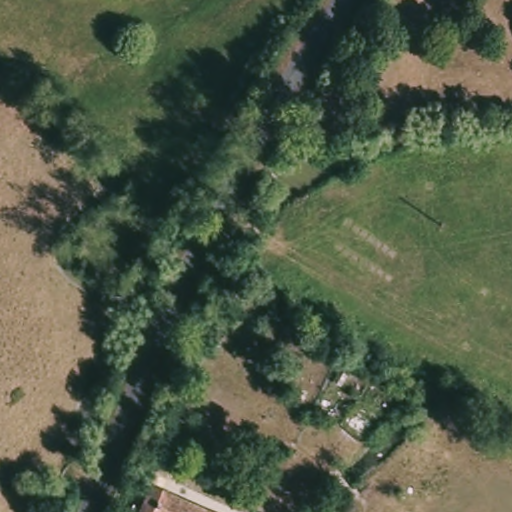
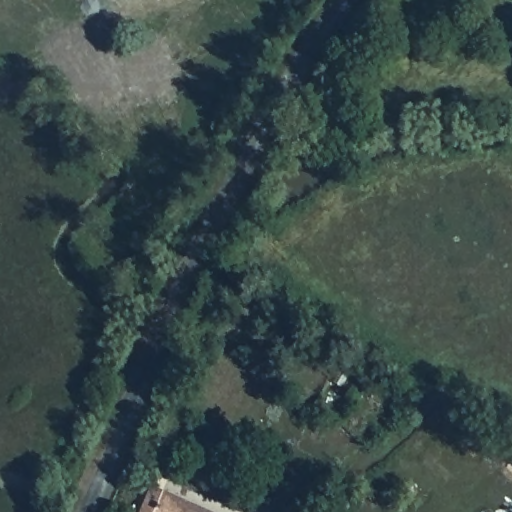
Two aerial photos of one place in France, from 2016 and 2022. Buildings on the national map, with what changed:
unchanged [(203,512),(163,512),(171,496),(203,512)]

